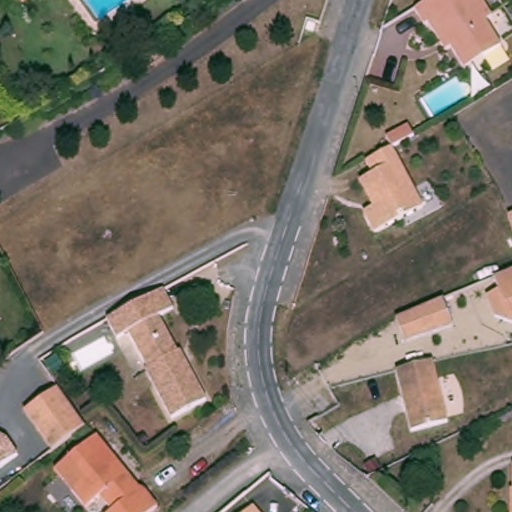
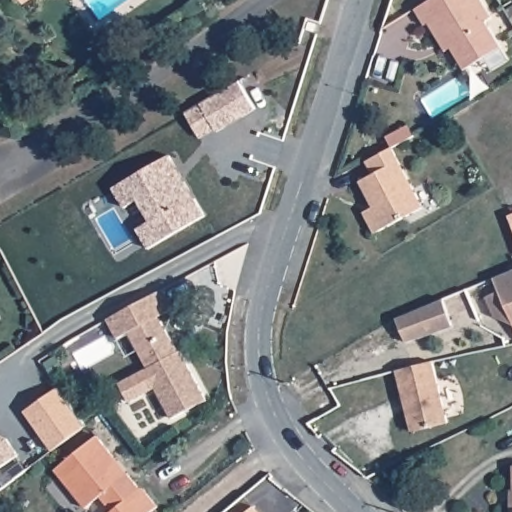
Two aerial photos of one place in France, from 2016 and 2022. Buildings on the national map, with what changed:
unchanged [(17,0),(26,0),(20,4),(17,0)]
unchanged [(461,59),(453,46),(448,49),(441,38),(431,21),(427,23),(417,7),(428,0),(485,0),(494,15),(488,19),(500,38),(504,45),(486,56),(467,68),(463,62),(461,59)]
unchanged [(512,7),(512,29),(500,8),(509,2),(512,7)]
new [(241,76),(257,105),(216,127),(201,135),(186,110),(200,101),(241,76)]
unchanged [(413,124),(419,135),(416,136),(409,140),(396,146),(391,134),(403,128),(413,124)]
unchanged [(414,177),(430,206),(406,219),(380,232),(368,210),(380,203),(367,179),(379,172),(371,158),(396,146),(414,177)]
new [(170,153),(206,214),(149,247),(137,227),(149,219),(137,198),(124,205),(112,186),(170,153)]
unchanged [(512,213),(512,217),(511,213),(512,213)]
unchanged [(487,295),(500,290),(495,280),(512,273),(512,324),(496,317),(487,295)]
unchanged [(177,310),(161,317),(170,335),(180,353),(175,356),(181,368),(190,363),(200,380),(209,401),(175,419),(159,390),(150,370),(154,368),(144,349),(135,331),(122,339),(112,320),(124,313),(168,290),(177,310)]
unchanged [(397,318),(441,300),(450,325),(406,341),(397,318)]
unchanged [(399,365),(402,364),(433,357),(435,357),(449,418),(412,426),(407,405),(405,393),(399,365)]
unchanged [(83,427),(50,452),(24,412),(57,389),(83,427)]
unchanged [(9,440),(18,458),(0,469),(0,436),(9,440)]
unchanged [(145,490),(147,491),(161,509),(157,512),(114,512),(103,497),(89,508),(58,469),(100,436),(118,458),(112,464),(125,479),(132,475),(144,491),(145,490)]
unchanged [(512,512),(511,512),(511,509),(511,487),(512,488),(512,512)]
unchanged [(256,507),(259,512),(250,512),(256,507)]

